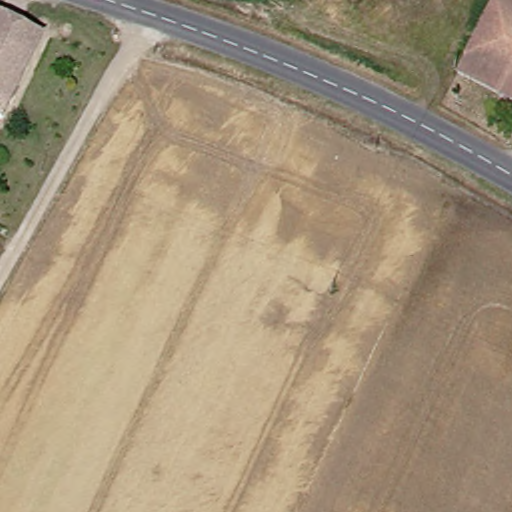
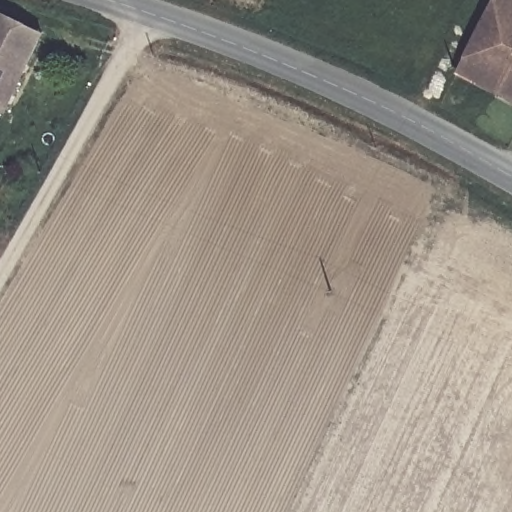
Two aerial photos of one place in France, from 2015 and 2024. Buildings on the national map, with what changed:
unchanged [(493,0),(512,0),(512,94),(507,91),(479,79),(462,71),(493,0)]
unchanged [(0,13),(0,7),(2,8),(0,13)]
unchanged [(46,28),(36,49),(0,32),(0,13),(2,8),(46,28)]
unchanged [(36,49),(7,106),(0,103),(0,32),(36,49)]

